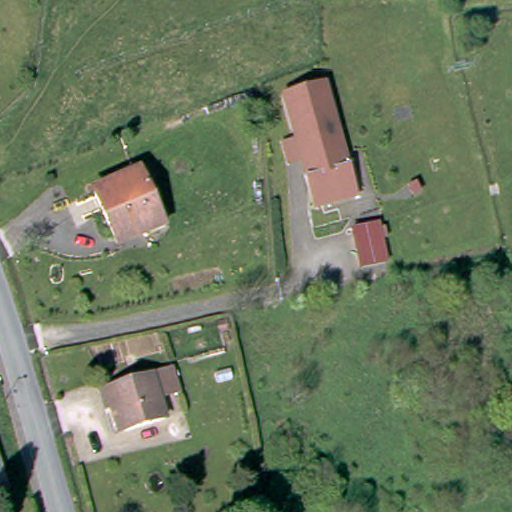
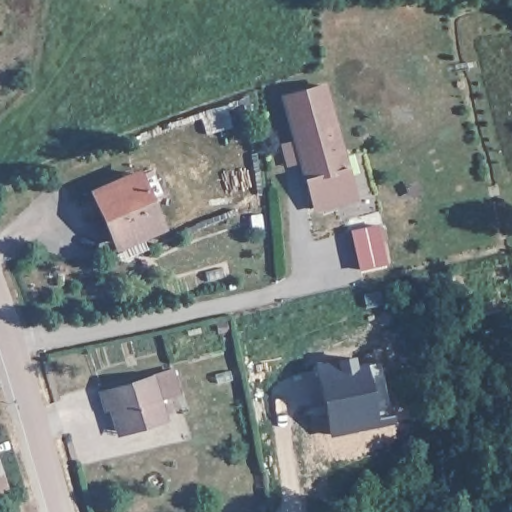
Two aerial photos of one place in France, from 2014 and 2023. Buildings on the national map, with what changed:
unchanged [(319,206),(286,94),(326,81),(359,195),(319,206)]
unchanged [(143,232),(141,226),(109,240),(90,192),(139,171),(161,225),(143,232)]
unchanged [(365,268),(356,229),(381,222),(390,262),(365,268)]
new [(355,357),(356,366),(383,361),(394,422),(333,434),(319,365),(355,357)]
unchanged [(105,406),(104,407),(98,388),(119,381),(151,373),(168,366),(176,391),(158,396),(163,418),(147,423),(122,430),(113,433),(105,406)]
unchanged [(0,493),(0,464),(8,490),(0,493)]

